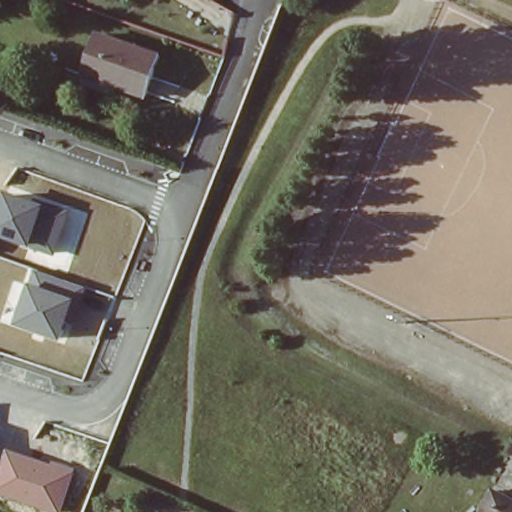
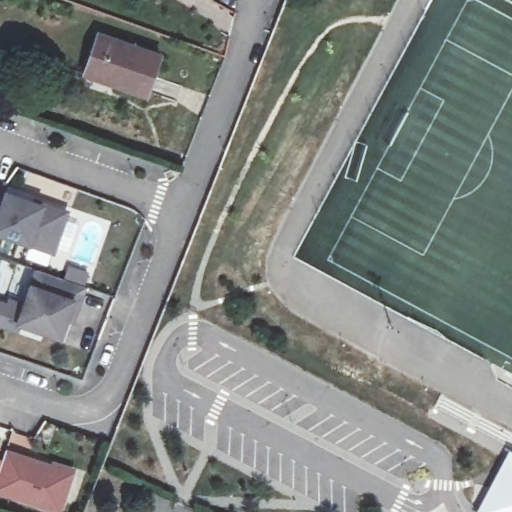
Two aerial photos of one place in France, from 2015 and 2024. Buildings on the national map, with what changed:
unchanged [(97,35),(157,58),(142,95),(141,98),(81,75),(82,73),(97,35)]
unchanged [(1,191),(30,202),(32,197),(68,210),(53,255),(0,236),(0,192),(1,191)]
unchanged [(0,325),(0,304),(4,305),(6,300),(20,306),(33,270),(84,288),(74,320),(69,318),(61,341),(23,326),(20,332),(0,325)]
unchanged [(3,455),(7,443),(77,467),(62,512),(53,512),(0,492),(0,454),(3,455)]
new [(508,450),(512,452),(512,512),(474,512),(508,450)]
demolished [(492,490),(512,501),(512,512),(479,512),(492,490)]

